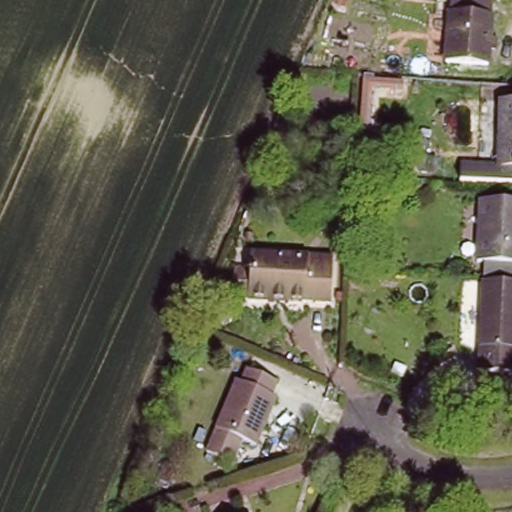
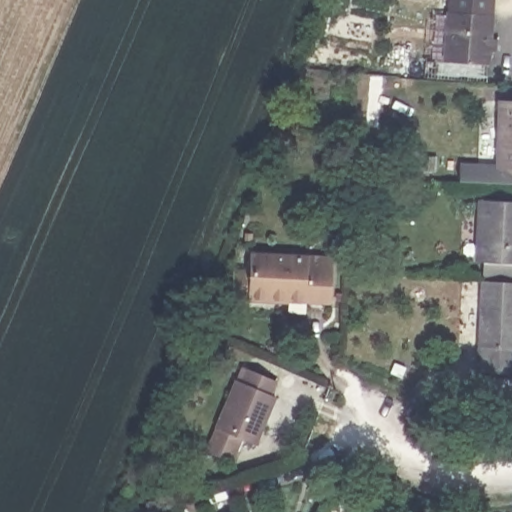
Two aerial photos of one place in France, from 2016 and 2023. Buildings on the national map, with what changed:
unchanged [(493,41),(501,42),(500,53),(492,52),(491,65),(450,61),(456,0),(476,0),(497,2),(493,41)]
unchanged [(505,166),(508,103),(512,103),(512,166),(505,166)]
unchanged [(512,201),(512,261),(475,260),(476,200),(512,201)]
unchanged [(237,272),(250,272),(251,254),(334,259),(329,304),(248,300),(235,299),(237,272)]
unchanged [(512,282),(512,373),(482,373),(483,281),(512,282)]
unchanged [(283,381),(277,394),(286,398),(264,448),(249,442),(238,467),(211,455),(244,379),(251,383),(257,369),(283,381)]

